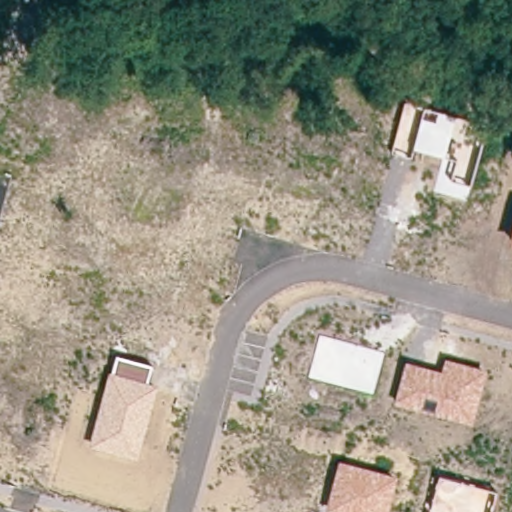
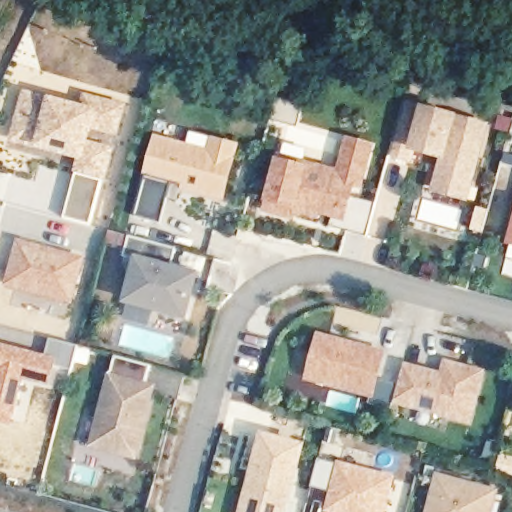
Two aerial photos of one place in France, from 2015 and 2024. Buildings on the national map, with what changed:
new [(65,219),(77,174),(80,161),(35,149),(36,145),(10,141),(23,90),(50,96),(79,104),(84,93),(127,105),(119,136),(95,125),(91,139),(116,149),(106,181),(102,181),(90,226),(65,219)]
new [(406,101),(422,104),(457,115),(487,121),(469,201),(432,191),(440,159),(414,152),(412,161),(392,156),(406,101)]
new [(182,190),(179,200),(169,197),(163,223),(138,217),(147,177),(144,177),(155,135),(188,144),(192,133),(212,138),(242,145),(225,202),(182,190)]
new [(310,166),(312,160),(339,168),(348,136),(375,143),(363,190),(356,188),(354,195),(378,202),(369,235),(331,224),(333,217),(321,214),(320,219),(297,209),(296,218),(264,211),(265,200),(277,156),(310,166)]
unchanged [(130,236),(178,249),(173,269),(198,276),(187,318),(127,302),(138,261),(125,257),(130,236)]
unchanged [(510,245),(512,236),(512,245),(510,245)]
new [(86,256),(74,303),(6,285),(18,238),(86,256)]
new [(388,349),(376,397),(307,379),(319,331),(388,349)]
new [(52,338),(79,346),(72,369),(56,365),(51,386),(23,378),(12,425),(0,422),(0,341),(47,354),(52,338)]
unchanged [(150,366),(146,382),(157,385),(137,459),(89,446),(109,371),(113,372),(117,356),(150,366)]
unchanged [(441,370),(445,358),(487,370),(473,426),(394,405),(405,361),(441,370)]
new [(264,437),(302,447),(285,512),(243,512),(264,437)]
unchanged [(397,476),(388,512),(325,512),(338,460),(397,476)]
new [(501,489),(495,512),(426,512),(437,471),(501,489)]

